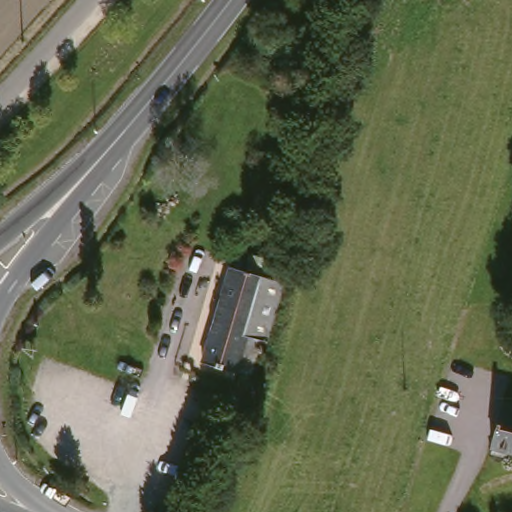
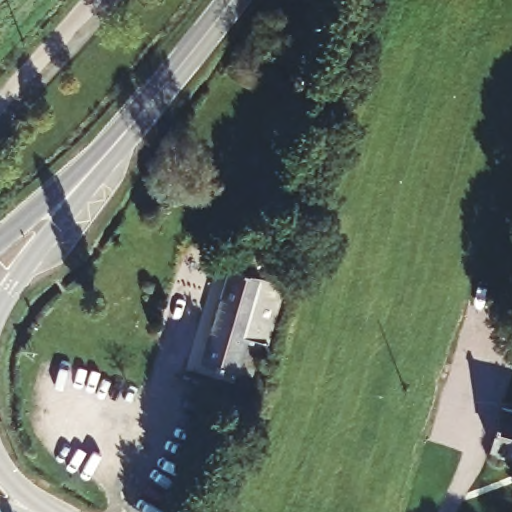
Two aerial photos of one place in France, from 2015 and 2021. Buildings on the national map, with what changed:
unchanged [(239,274),(272,282),(245,377),(210,368),(239,274)]
unchanged [(512,412),(512,458),(485,451),(497,408),(512,412)]

